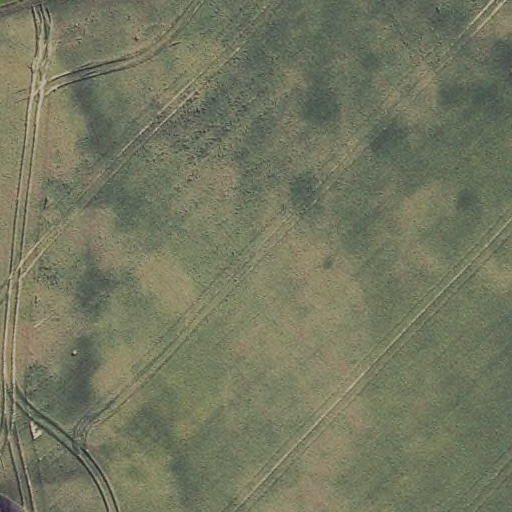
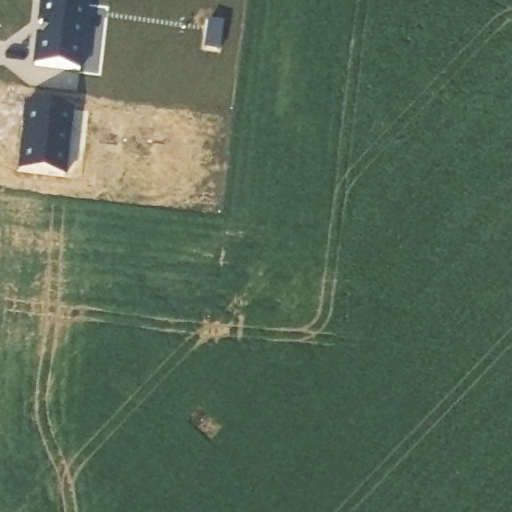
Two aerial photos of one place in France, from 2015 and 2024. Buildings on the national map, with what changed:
new [(79,71),(33,65),(41,0),(48,0),(87,6),(79,71)]
new [(18,170),(25,103),(73,109),(66,175),(18,170)]

